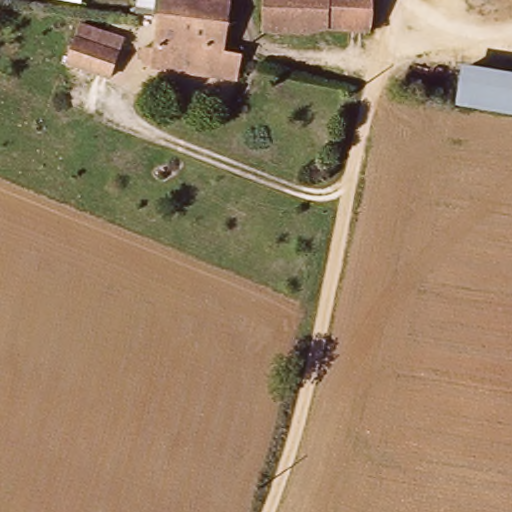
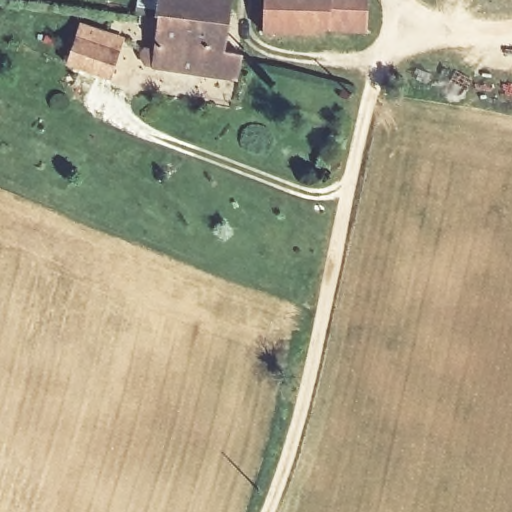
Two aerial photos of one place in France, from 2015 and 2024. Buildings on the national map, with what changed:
unchanged [(190,0),(187,21),(157,18),(152,17),(155,0),(190,0)]
unchanged [(229,0),(225,26),(187,21),(190,0),(229,0)]
unchanged [(317,36),(266,33),(268,0),(377,0),(379,3),(375,34),(332,30),(317,36)]
unchanged [(233,80),(148,66),(140,61),(142,50),(152,50),(157,18),(187,21),(183,46),(223,53),(241,56),(239,61),(233,80)]
unchanged [(225,26),(225,37),(223,53),(183,46),(187,21),(225,26)]
unchanged [(112,37),(125,42),(122,53),(115,77),(72,64),(85,29),(112,37)]
demolished [(512,119),(457,109),(462,65),(512,72),(512,119)]

